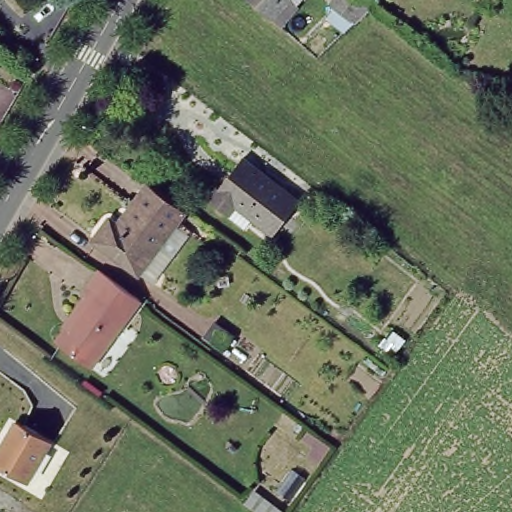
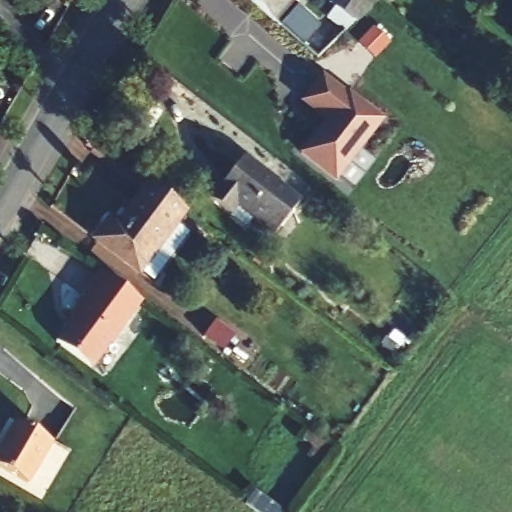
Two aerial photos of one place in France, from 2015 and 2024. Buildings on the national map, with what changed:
unchanged [(276,21),(251,0),(293,0),(276,21)]
unchanged [(335,0),(382,0),(372,9),(358,22),(333,3),(335,0)]
unchanged [(492,10),(481,0),(500,0),(492,10)]
new [(345,92),(347,91),(382,120),(335,181),(297,155),(322,122),(297,104),(321,74),(345,92)]
unchanged [(240,151),(298,197),(274,228),(233,196),(225,207),(207,193),(240,151)]
unchanged [(140,269),(135,275),(122,264),(82,234),(80,232),(94,212),(103,220),(133,180),(167,205),(157,219),(170,230),(140,269)]
unchanged [(69,329),(66,327),(80,308),(83,311),(90,301),(85,297),(102,272),(142,303),(143,303),(92,370),(59,343),(69,329)]
unchanged [(32,480),(0,463),(0,455),(13,430),(18,421),(52,438),(45,454),(32,480)]
unchanged [(287,509),(285,512),(267,512),(247,497),(257,486),(287,509)]

